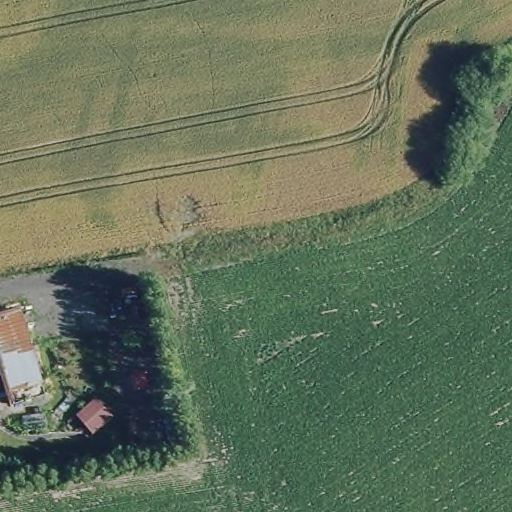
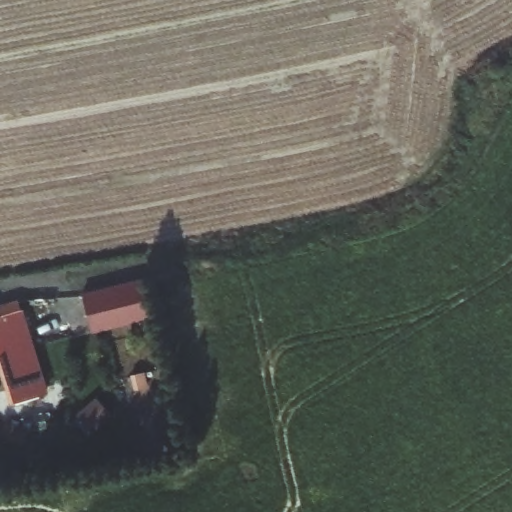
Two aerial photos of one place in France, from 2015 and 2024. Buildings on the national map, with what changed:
new [(140,280),(148,312),(122,319),(124,327),(91,335),(81,295),(140,280)]
unchanged [(45,390),(15,400),(0,360),(0,311),(17,306),(45,390)]

